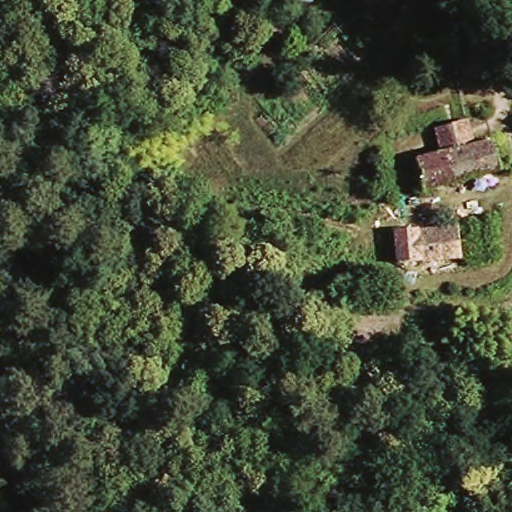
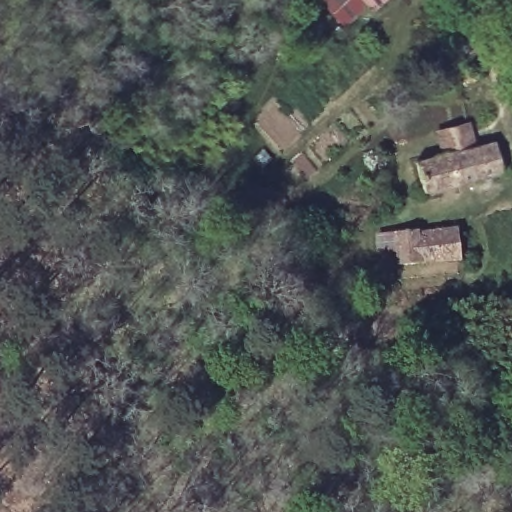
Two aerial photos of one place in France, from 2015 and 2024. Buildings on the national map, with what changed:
new [(374,14),(366,7),(345,28),(317,0),(388,0),(374,14)]
unchanged [(497,172),(418,191),(412,158),(437,151),(432,129),(467,119),(475,143),(490,139),(497,172)]
unchanged [(393,264),(392,233),(408,232),(407,224),(453,225),(452,244),(453,262),(417,263),(393,264)]
unchanged [(490,259),(473,263),(470,248),(488,244),(490,259)]

